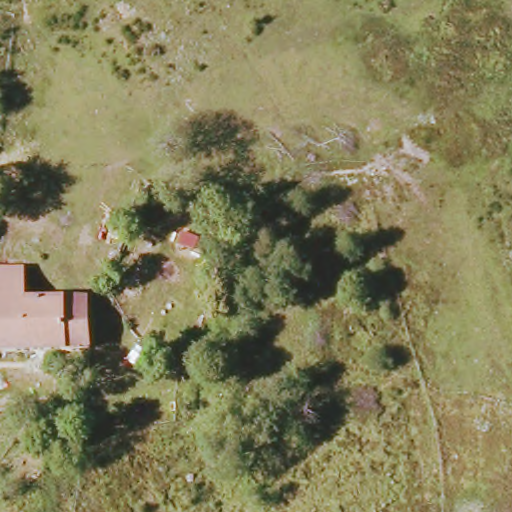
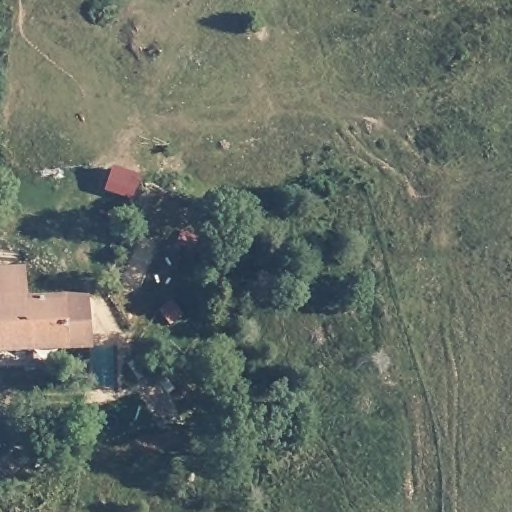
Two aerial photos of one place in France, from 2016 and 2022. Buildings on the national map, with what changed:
unchanged [(26,272),(27,305),(0,306),(0,271),(26,272)]
unchanged [(27,305),(89,305),(101,352),(0,355),(0,306),(27,305)]

